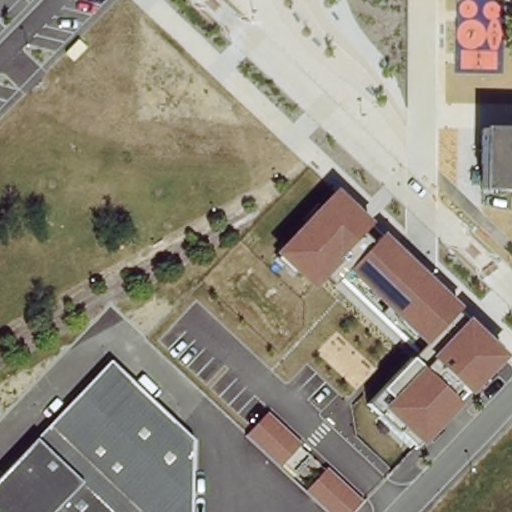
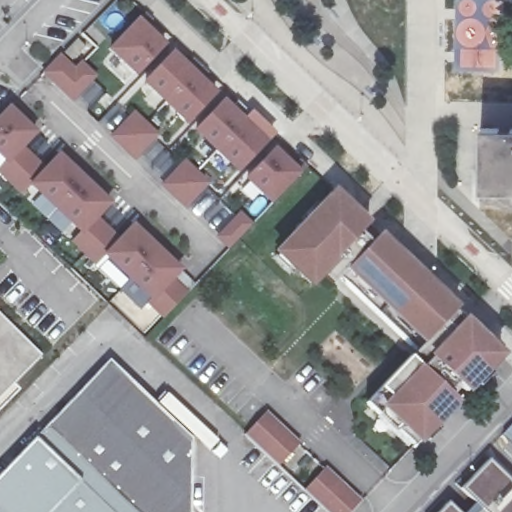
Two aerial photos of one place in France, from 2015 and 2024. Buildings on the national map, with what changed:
new [(145,26),(152,19),(159,26),(125,63),(99,39),(126,10),(145,26)]
new [(158,39),(166,47),(173,40),(202,66),(195,74),(207,87),(180,116),(130,68),(158,39)]
new [(108,73),(78,105),(50,79),(80,47),(108,73)]
new [(230,108),(237,100),(266,129),(259,136),(271,147),(245,176),(194,128),(221,100),(230,108)]
new [(28,152),(53,176),(66,161),(116,208),(101,224),(126,247),(141,232),(185,275),(178,285),(193,300),(171,324),(156,309),(158,306),(112,261),(103,270),(79,247),(88,237),(38,190),(30,199),(5,176),(14,166),(0,153),(0,130),(16,114),(42,137),(28,152)]
unchanged [(160,139),(138,162),(115,140),(137,117),(160,139)]
unchanged [(486,191),(486,129),(512,130),(512,192),(486,191)]
new [(298,174),(306,166),(314,173),(279,209),(254,185),(281,156),(298,174)]
new [(215,191),(193,214),(171,192),(192,170),(215,191)]
unchanged [(359,241),(340,260),(404,321),(399,327),(341,276),(334,285),(326,278),(314,288),(276,253),(335,190),(372,227),(359,241)]
new [(258,231),(236,256),(226,245),(246,222),(258,231)]
unchanged [(368,406),(419,347),(399,327),(404,321),(340,260),(372,227),(457,312),(502,352),(468,393),(458,384),(448,395),(457,404),(415,447),(368,406)]
new [(0,399),(0,319),(40,358),(0,399)]
unchanged [(200,436),(191,512),(0,512),(0,476),(117,367),(200,436)]
unchanged [(268,412),(300,443),(279,467),(246,436),(268,412)]
new [(482,506),(462,488),(491,459),(512,480),(512,512),(477,512),(482,506)]
unchanged [(326,467),(363,499),(351,512),(330,512),(306,490),(326,467)]
new [(451,504),(459,512),(442,512),(451,504)]

